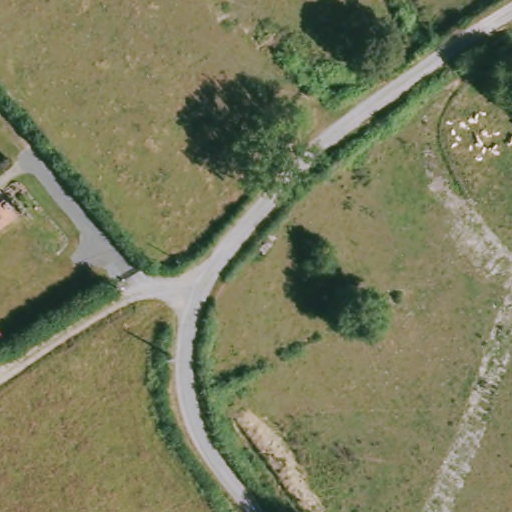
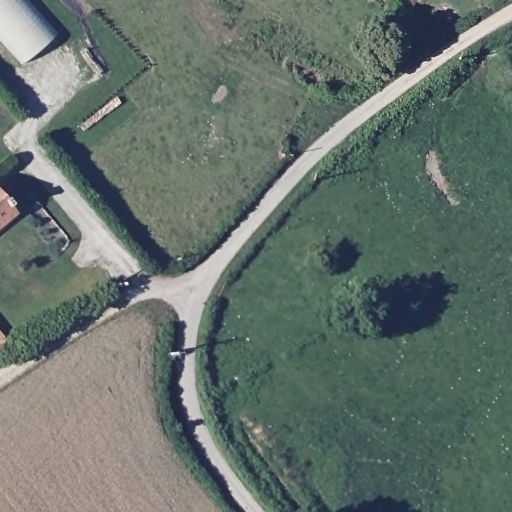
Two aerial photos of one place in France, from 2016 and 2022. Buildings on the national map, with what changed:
new [(0,40),(0,0),(27,0),(57,34),(23,65),(0,40)]
unchanged [(0,223),(0,208),(8,216),(0,223)]

